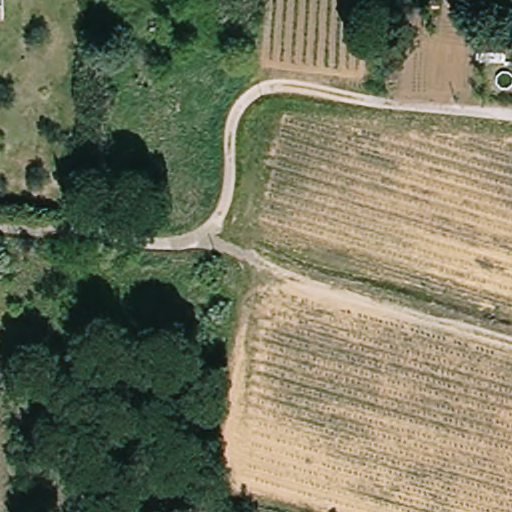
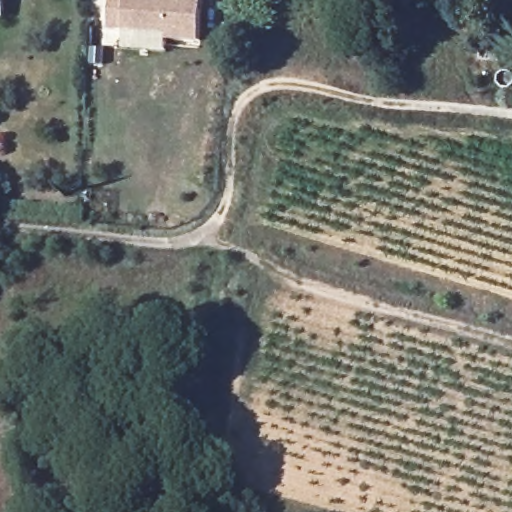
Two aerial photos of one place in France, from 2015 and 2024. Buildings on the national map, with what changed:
unchanged [(4,17),(0,18),(0,0),(3,0),(4,17)]
new [(197,42),(165,41),(166,35),(123,32),(108,30),(110,0),(200,0),(197,42)]

